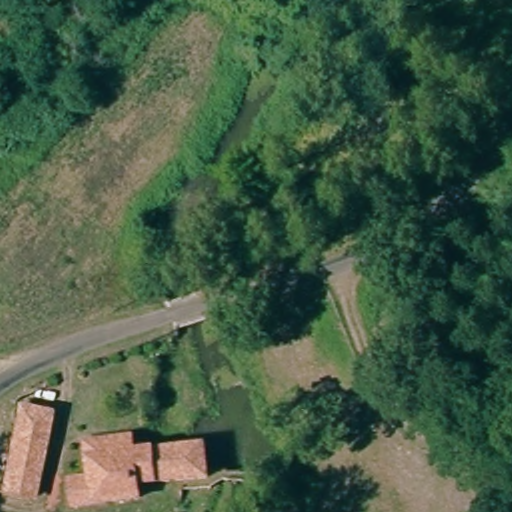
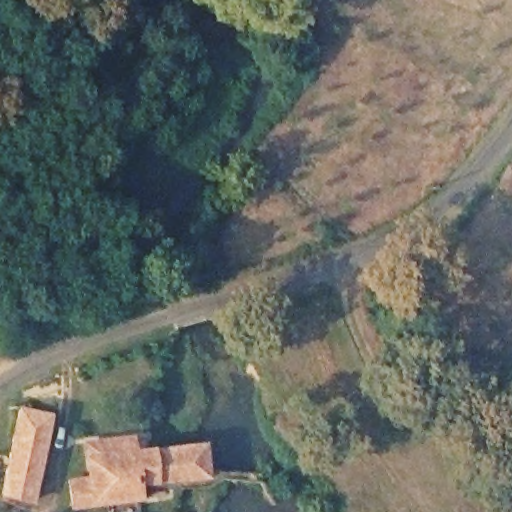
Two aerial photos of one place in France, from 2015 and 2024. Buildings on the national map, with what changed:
unchanged [(0,498),(7,472),(24,409),(53,418),(37,480),(31,506),(0,498)]
unchanged [(209,481),(203,482),(135,486),(136,504),(69,506),(68,475),(88,472),(88,453),(88,438),(135,434),(135,449),(204,447),(208,446),(209,481)]

